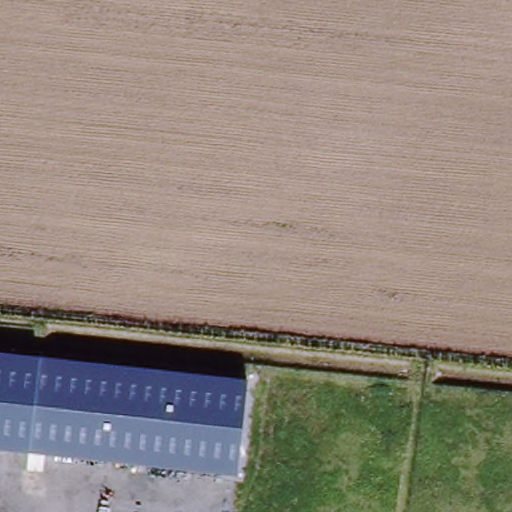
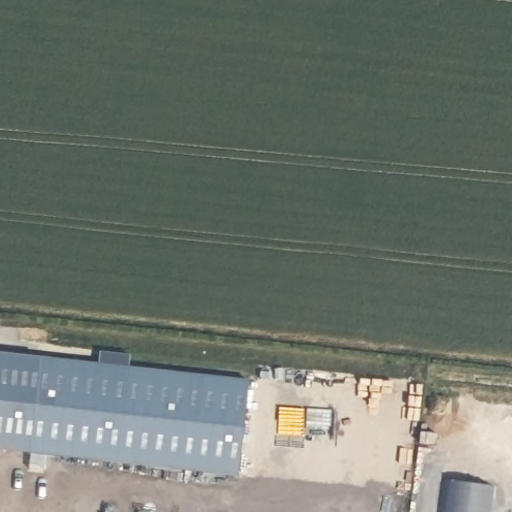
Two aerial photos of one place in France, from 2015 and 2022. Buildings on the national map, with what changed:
unchanged [(237,474),(0,449),(0,352),(247,379),(237,474)]
new [(492,485),(490,512),(439,512),(442,478),(492,485)]

